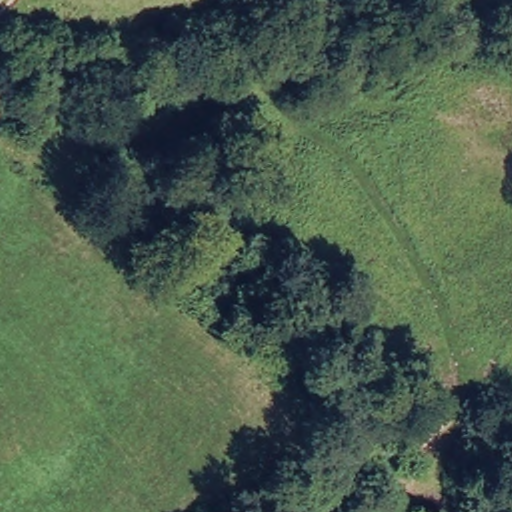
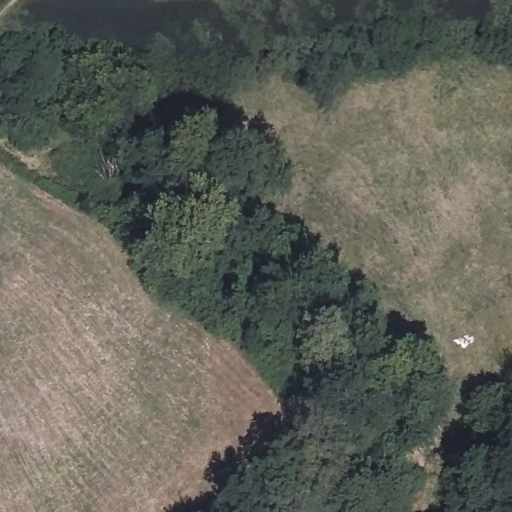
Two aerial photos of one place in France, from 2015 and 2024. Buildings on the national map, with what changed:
[]

